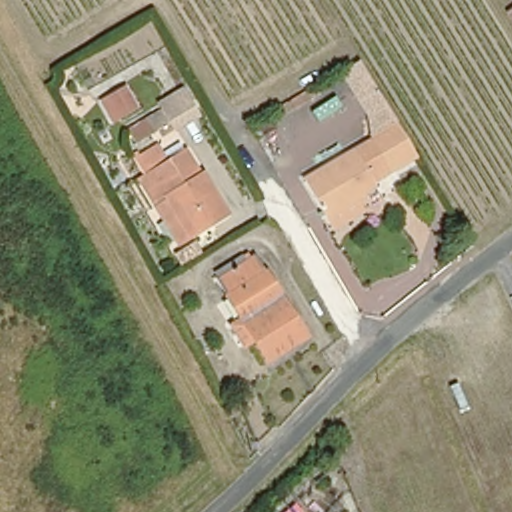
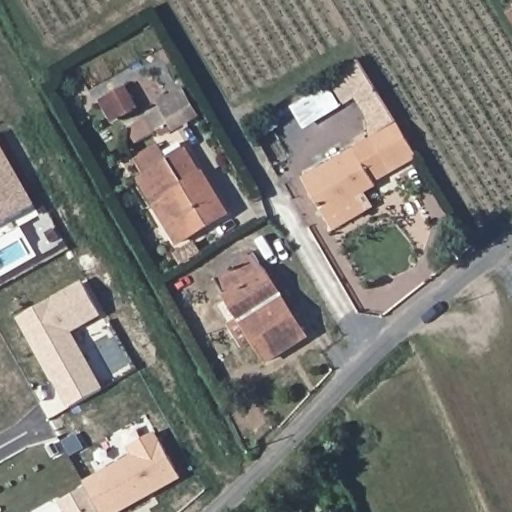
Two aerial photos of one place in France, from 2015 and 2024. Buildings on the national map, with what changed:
unchanged [(512,5),(512,16),(507,8),(512,5)]
unchanged [(332,233),(326,222),(302,181),(369,138),(364,129),(372,124),(343,74),(357,66),(412,157),(373,180),(376,186),(354,199),(356,203),(362,214),(332,233)]
unchanged [(107,102),(115,97),(132,86),(145,108),(128,119),(121,123),(107,102)]
unchanged [(158,135),(137,149),(127,134),(162,113),(171,127),(173,131),(161,139),(158,135)]
new [(0,227),(0,141),(38,205),(0,227)]
unchanged [(228,216),(179,246),(148,196),(152,193),(143,180),(144,179),(131,159),(137,155),(139,159),(157,148),(168,166),(187,155),(202,179),(203,178),(228,216)]
unchanged [(306,334),(266,360),(253,340),(240,349),(224,325),(238,316),(212,277),(219,273),(211,262),(234,247),(241,259),(252,251),(306,334)]
new [(74,333),(105,388),(70,409),(20,317),(84,281),(103,317),(74,333)]
new [(64,512),(60,502),(88,488),(84,481),(133,456),(129,448),(158,432),(183,479),(125,512),(64,512)]

